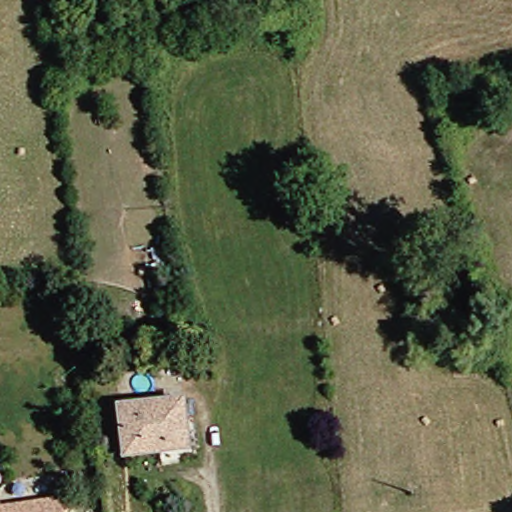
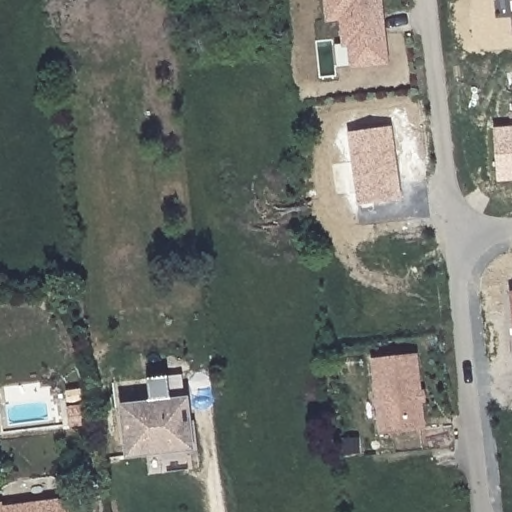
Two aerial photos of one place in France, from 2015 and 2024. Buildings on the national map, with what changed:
new [(353,66),(351,44),(344,44),(342,19),(328,20),(326,0),(380,0),(382,14),(384,33),(387,63),(353,66)]
new [(402,199),(356,205),(344,132),(392,125),(402,199)]
new [(497,183),(492,128),(512,126),(512,182),(497,183)]
new [(508,290),(512,290),(512,327),(508,290)]
new [(418,355),(426,431),(383,436),(374,360),(418,355)]
unchanged [(190,440),(164,443),(165,447),(130,451),(126,402),(185,394),(190,440)]
unchanged [(0,501),(9,499),(9,504),(57,499),(71,498),(72,506),(73,512),(0,512),(0,501)]

